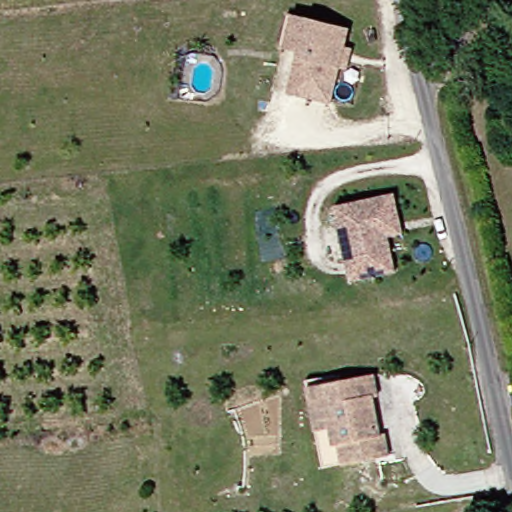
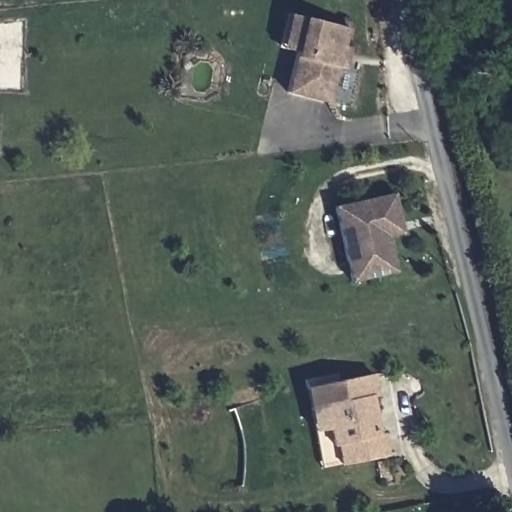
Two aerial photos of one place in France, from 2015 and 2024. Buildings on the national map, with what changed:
unchanged [(341,50),(349,52),(343,73),(336,72),(327,107),(284,96),(294,55),(279,52),(288,17),(302,21),(346,32),(341,50)]
unchanged [(394,196),(398,217),(383,219),(393,273),(348,282),(334,207),(380,199),(394,196)]
unchanged [(377,396),(373,397),(379,436),(383,435),(387,457),(340,464),(336,444),(332,445),(328,427),(314,430),(306,387),(313,386),(374,376),(377,396)]

